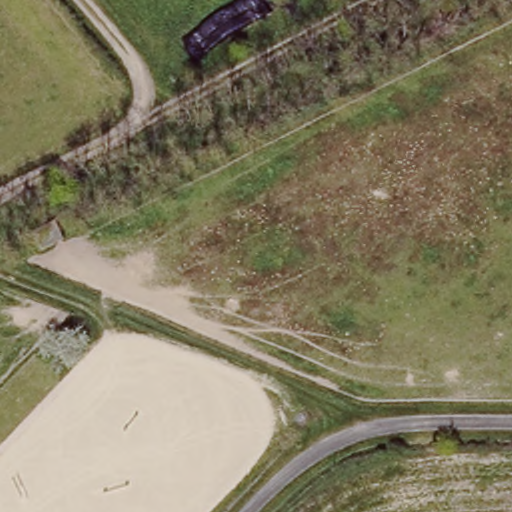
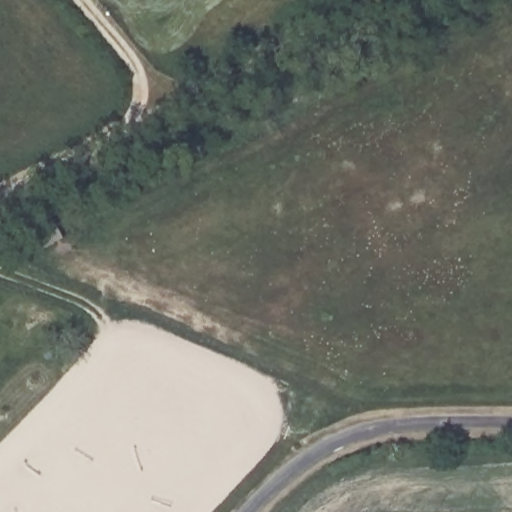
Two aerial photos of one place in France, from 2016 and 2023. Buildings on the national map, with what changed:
unchanged [(58,215),(70,238),(40,251),(30,229),(58,215)]

